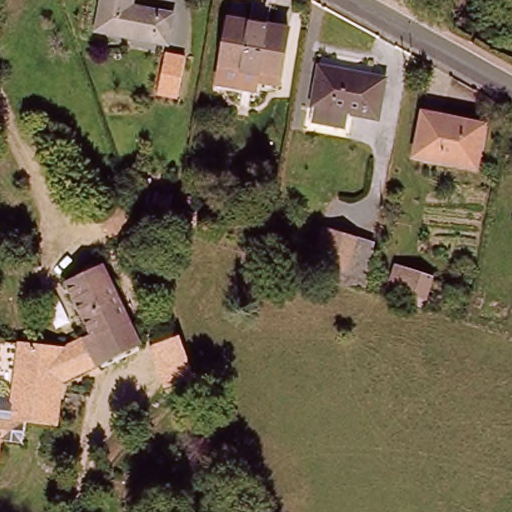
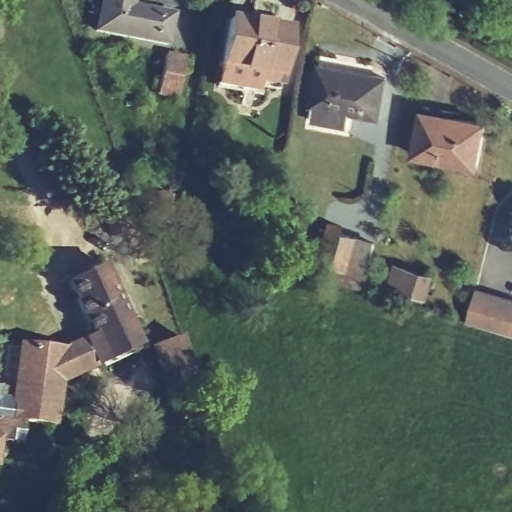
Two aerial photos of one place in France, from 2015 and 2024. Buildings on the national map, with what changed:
unchanged [(171,40),(100,28),(104,0),(134,0),(134,1),(176,9),(171,40)]
unchanged [(280,79),(222,69),(232,18),(289,29),(280,79)]
unchanged [(186,51),(180,91),(160,87),(167,49),(186,51)]
unchanged [(322,70),(386,80),(380,119),(316,109),(322,70)]
unchanged [(477,164),(416,152),(417,145),(423,110),(485,121),(477,164)]
unchanged [(137,195),(156,199),(154,211),(134,207),(137,195)]
unchanged [(169,201),(180,204),(177,217),(166,215),(169,201)]
unchanged [(361,286),(329,277),(334,262),(319,257),(311,254),(321,225),(329,228),(349,234),(371,240),(361,286)]
unchanged [(422,305),(411,301),(413,293),(397,289),(389,286),(395,266),(402,268),(430,277),(422,305)]
unchanged [(97,341),(74,287),(110,271),(142,341),(75,370),(71,353),(97,341)]
new [(467,323),(477,288),(512,299),(512,336),(467,323)]
demolished [(482,298),(496,303),(491,317),(477,312),(482,298)]
unchanged [(151,346),(179,337),(192,376),(164,385),(151,346)]
unchanged [(39,430),(9,418),(0,416),(0,405),(5,392),(22,342),(62,356),(71,353),(75,370),(142,341),(145,347),(76,377),(55,387),(39,430)]
unchanged [(0,405),(0,391),(5,392),(0,405)]
unchanged [(1,438),(0,438),(0,416),(9,418),(1,438)]

